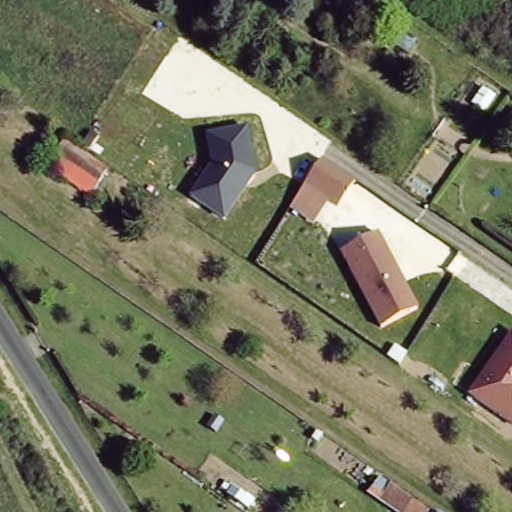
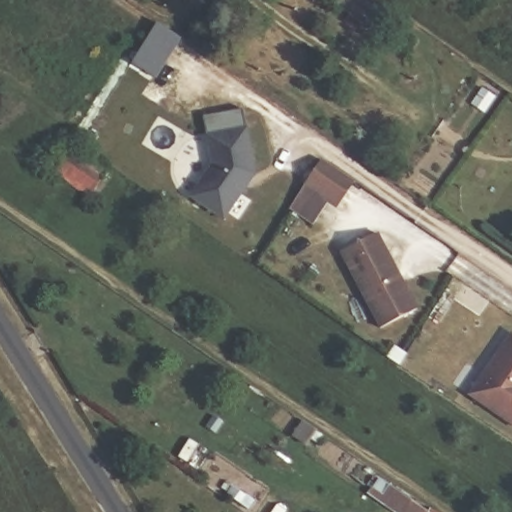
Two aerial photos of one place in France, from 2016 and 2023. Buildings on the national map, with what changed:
new [(160,24),(180,38),(165,60),(153,77),(133,64),(145,47),(160,24)]
unchanged [(246,124),(256,172),(227,217),(189,194),(210,158),(205,132),(246,124)]
unchanged [(50,166),(70,137),(114,167),(91,201),(50,166)]
unchanged [(353,180),(337,208),(326,202),(312,220),(290,206),(320,157),(353,180)]
unchanged [(377,230),(417,306),(378,326),(340,251),(377,230)]
unchanged [(512,331),(512,422),(468,393),(510,329),(512,331)]

